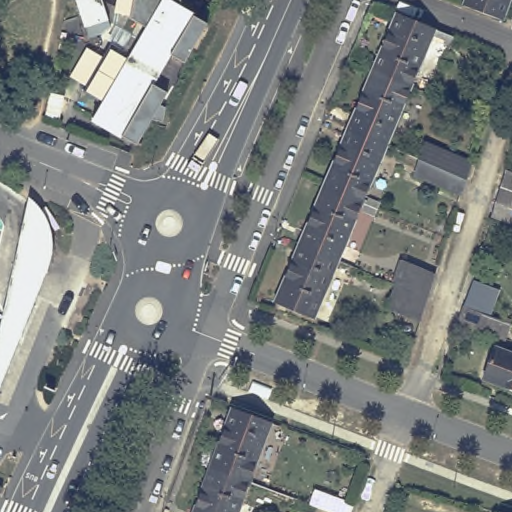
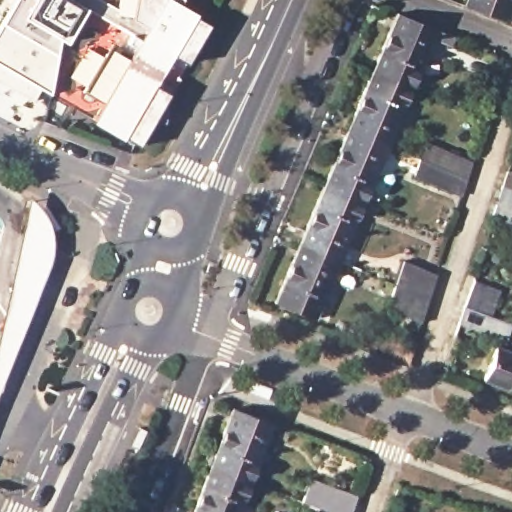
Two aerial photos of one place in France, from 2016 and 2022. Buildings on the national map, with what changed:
new [(86,8),(65,43),(61,42),(49,94),(41,90),(33,102),(0,82),(0,23),(14,0),(102,0),(117,9),(110,23),(86,8)]
unchanged [(133,143),(126,140),(92,120),(101,103),(83,92),(105,54),(111,43),(131,54),(139,40),(110,23),(116,11),(119,0),(181,0),(180,8),(208,24),(176,77),(177,78),(179,79),(163,106),(166,108),(163,123),(154,121),(152,120),(136,146),(135,145),(133,143)]
unchanged [(483,0),(512,0),(512,4),(510,11),(483,0)]
unchanged [(396,14),(437,30),(455,37),(452,46),(433,39),(412,88),(372,73),(396,14)]
unchanged [(348,128),(372,73),(412,88),(388,145),(348,128)]
unchanged [(323,186),(348,128),(388,145),(363,203),(323,186)]
unchanged [(419,157),(425,142),(471,159),(466,176),(461,192),(413,173),(419,157)]
unchanged [(491,218),(499,188),(505,171),(512,174),(512,225),(491,218)]
unchanged [(299,243),(323,186),(363,203),(339,260),(299,243)]
unchanged [(44,211),(48,218),(50,224),(52,236),(53,246),(50,263),(0,389),(0,327),(30,198),(44,211)]
unchanged [(273,303),(299,243),(339,260),(314,320),(273,303)]
unchanged [(393,282),(401,259),(436,271),(428,295),(420,320),(385,307),(393,282)]
unchanged [(457,324),(462,308),(472,282),(498,291),(488,317),(510,325),(504,341),(457,324)]
unchanged [(485,379),(498,349),(512,354),(512,390),(485,379)]
unchanged [(211,469),(235,408),(275,421),(252,484),(211,469)]
unchanged [(252,484),(241,512),(195,512),(211,469),(252,484)]
unchanged [(314,491),(352,505),(349,512),(323,512),(309,507),(314,491)]

